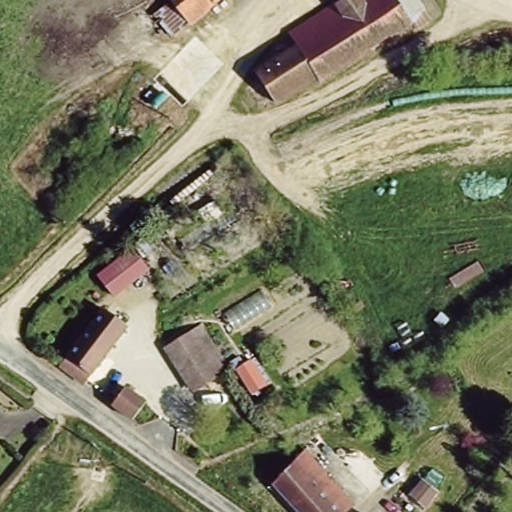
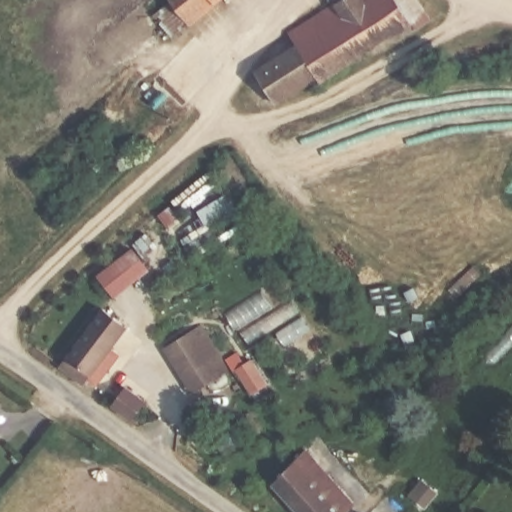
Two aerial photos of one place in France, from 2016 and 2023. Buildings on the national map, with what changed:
unchanged [(173,32),(152,5),(158,0),(215,0),(173,32)]
unchanged [(314,80),(275,99),(256,69),(297,43),(289,31),(337,0),(423,0),(432,15),(417,26),(412,17),(319,77),(314,80)]
unchanged [(126,253),(142,272),(108,301),(92,282),(126,253)]
unchanged [(109,302),(131,318),(90,374),(67,358),(109,302)]
unchanged [(165,348),(198,326),(225,367),(193,389),(165,348)]
unchanged [(250,358),(267,386),(252,396),(235,369),(250,358)]
unchanged [(147,404),(135,421),(114,406),(127,387),(147,404)]
unchanged [(343,510),(340,512),(300,512),(270,481),(305,449),(332,477),(350,497),(340,507),(343,510)]
unchanged [(420,478),(438,492),(425,508),(408,495),(420,478)]

